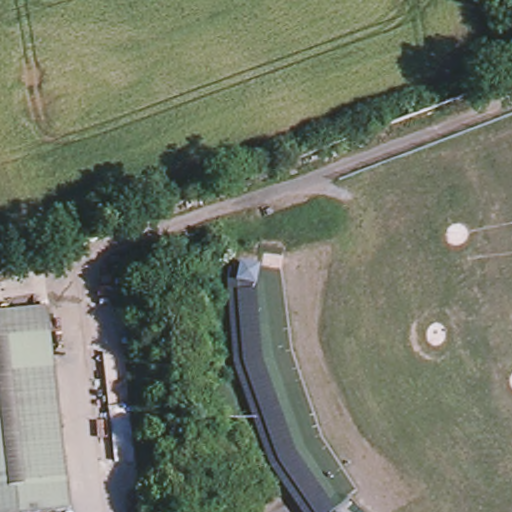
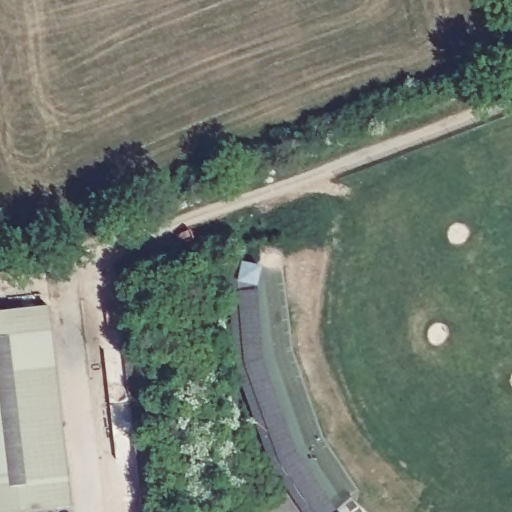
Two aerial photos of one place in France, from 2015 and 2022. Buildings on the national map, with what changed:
unchanged [(230,264),(237,263),(238,255),(257,258),(255,273),(237,273),(236,283),(255,285),(260,351),(295,448),(333,502),(321,512),(308,512),(270,460),(235,359),(228,310),(227,274),(230,264)]
unchanged [(70,493),(0,502),(0,301),(45,295),(70,493)]
unchanged [(337,507),(342,512),(333,512),(337,507)]

